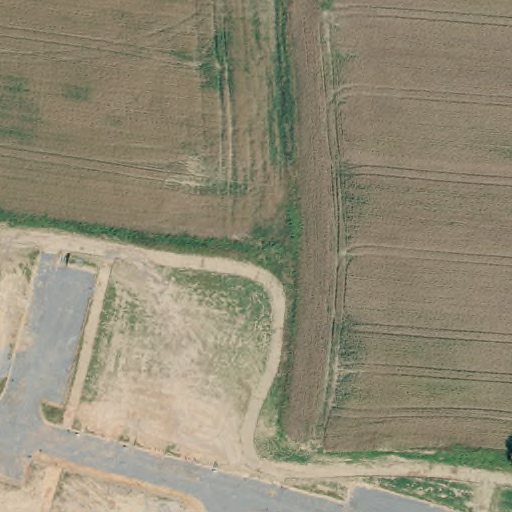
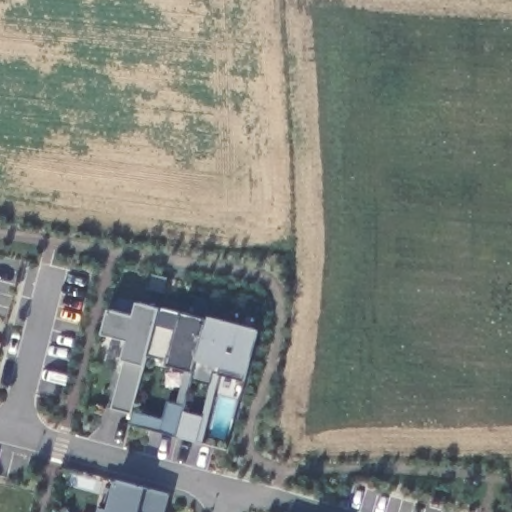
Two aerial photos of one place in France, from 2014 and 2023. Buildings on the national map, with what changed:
new [(108,309),(132,314),(136,301),(160,307),(155,324),(176,329),(182,312),(207,320),(208,317),(259,330),(246,379),(220,374),(204,441),(129,424),(131,413),(113,408),(125,360),(130,340),(102,332),(108,309)]
new [(145,487),(169,494),(165,512),(99,512),(101,505),(109,507),(115,480),(145,487)]

